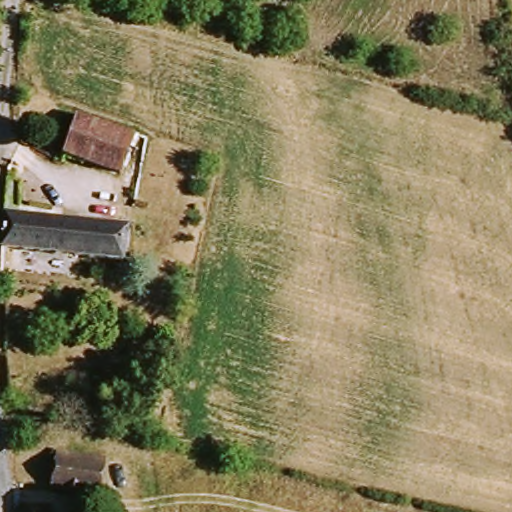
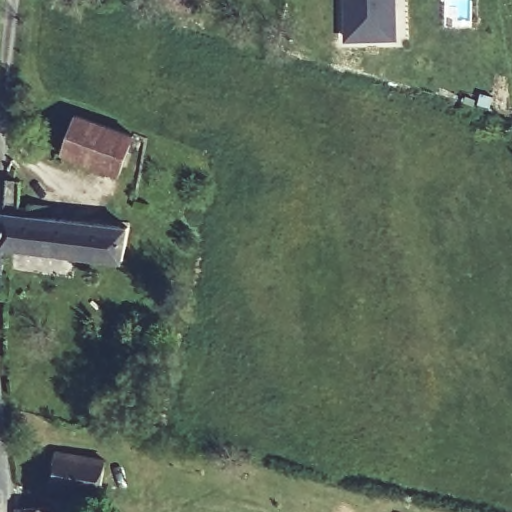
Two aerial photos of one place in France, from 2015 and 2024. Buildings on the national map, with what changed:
new [(397,40),(345,42),(343,0),(396,0),(397,40)]
unchanged [(125,173),(68,153),(82,114),(139,135),(125,173)]
unchanged [(128,260),(7,247),(9,213),(12,179),(25,181),(25,207),(34,208),(32,215),(134,226),(128,260)]
unchanged [(105,495),(55,487),(61,452),(111,461),(105,495)]

